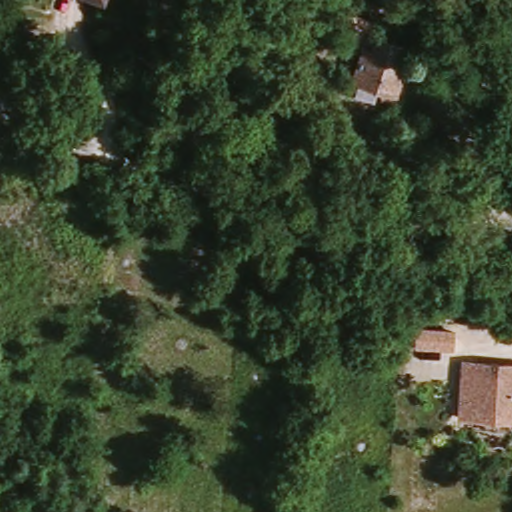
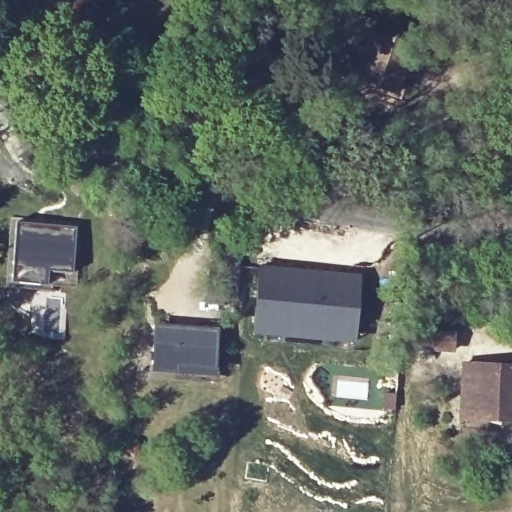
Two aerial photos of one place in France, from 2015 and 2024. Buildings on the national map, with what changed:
unchanged [(106,0),(103,9),(78,0),(106,0)]
unchanged [(363,79),(370,57),(352,50),(360,26),(379,32),(377,41),(416,53),(410,70),(417,71),(414,83),(407,81),(401,98),(384,91),(361,85),(363,79)]
unchanged [(495,61),(506,59),(509,59),(511,72),(504,74),(498,76),(503,88),(474,94),(469,67),(495,61)]
unchanged [(209,122),(201,143),(180,136),(188,114),(209,122)]
new [(11,282),(15,221),(74,228),(71,272),(46,269),(45,285),(11,282)]
new [(253,264),(304,268),(361,274),(353,344),(250,334),(253,264)]
new [(153,325),(217,330),(213,378),(149,374),(153,325)]
unchanged [(415,325),(451,327),(450,344),(414,342),(415,325)]
unchanged [(461,357),(512,360),(512,415),(474,414),(458,413),(461,357)]

